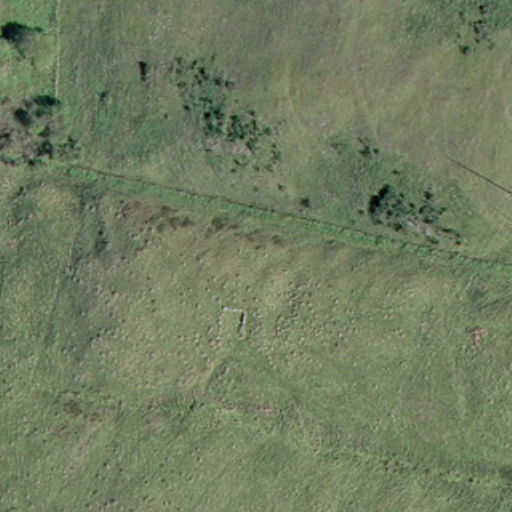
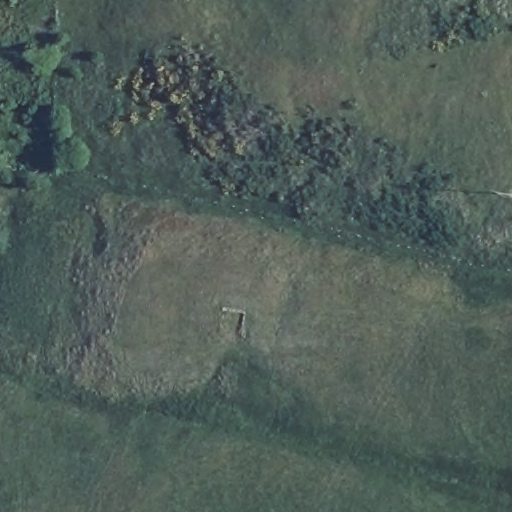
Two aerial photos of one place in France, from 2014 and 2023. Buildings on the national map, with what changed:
[]

